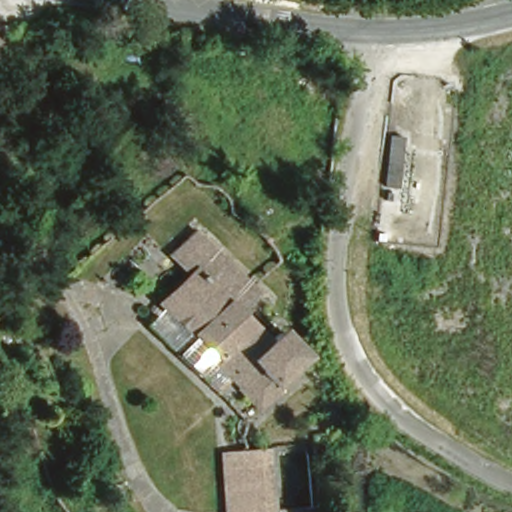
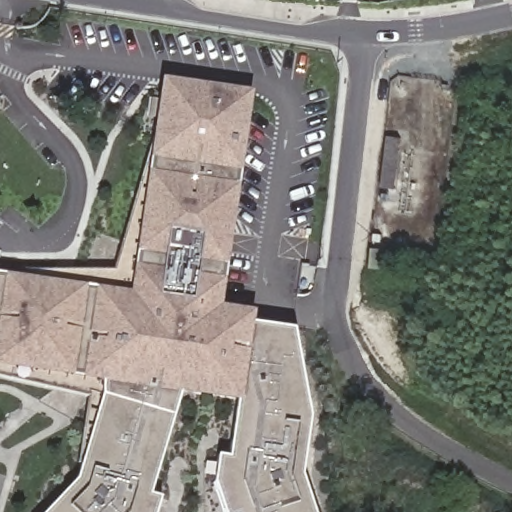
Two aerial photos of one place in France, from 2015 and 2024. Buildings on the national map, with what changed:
new [(129,295),(150,151),(160,79),(251,93),(219,307),(253,313),(251,325),(241,405),(235,404),(178,396),(100,384),(0,369),(0,275),(129,295)]
unchanged [(376,184),(383,136),(398,138),(391,186),(376,184)]
new [(129,295),(0,275),(0,271),(112,271),(150,151),(129,295)]
demolished [(256,402),(229,372),(215,357),(184,325),(160,300),(156,297),(187,267),(180,260),(170,248),(194,225),(212,242),(215,245),(255,283),(237,302),(268,332),(280,323),(304,348),(290,360),(294,365),(275,381),(277,383),(256,402)]
new [(309,419),(300,477),(312,512),(222,512),(212,484),(216,457),(227,459),(235,404),(241,405),(251,325),(291,330),(309,419)]
new [(100,384),(100,397),(75,481),(88,398),(0,376),(0,369),(100,384)]
new [(149,496),(160,499),(157,512),(46,512),(75,481),(100,397),(100,384),(178,396),(149,496)]
demolished [(236,451),(237,433),(278,435),(277,452),(269,452),(273,495),(275,512),(245,512),(244,494),(240,455),(268,452),(236,451)]

